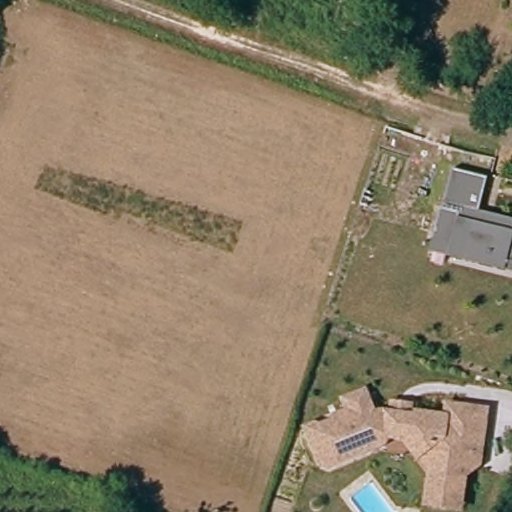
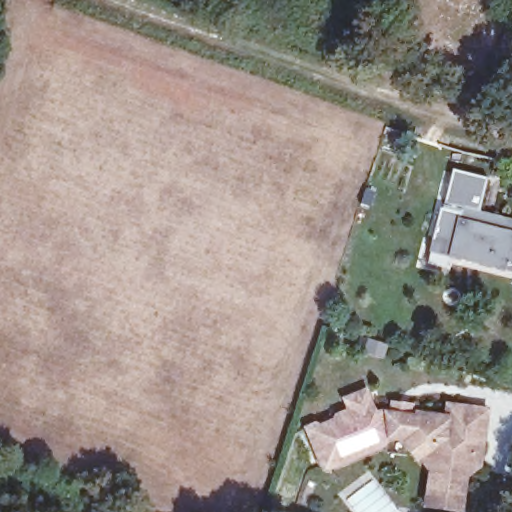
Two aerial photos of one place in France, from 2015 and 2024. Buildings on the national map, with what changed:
unchanged [(448,259),(430,256),(433,243),(431,242),(438,211),(460,216),(461,210),(442,206),(449,172),(484,179),(477,213),(512,220),(512,273),(505,271),(448,259)]
unchanged [(433,472),(407,440),(391,438),(384,446),(330,469),(323,466),(308,430),(316,427),(320,428),(336,421),(337,417),(351,412),(346,401),(366,393),(376,416),(381,414),(392,415),(393,405),(412,407),(411,417),(446,421),(448,405),(487,410),(484,441),(482,456),(481,465),(467,476),(464,509),(430,506),(433,472)]

